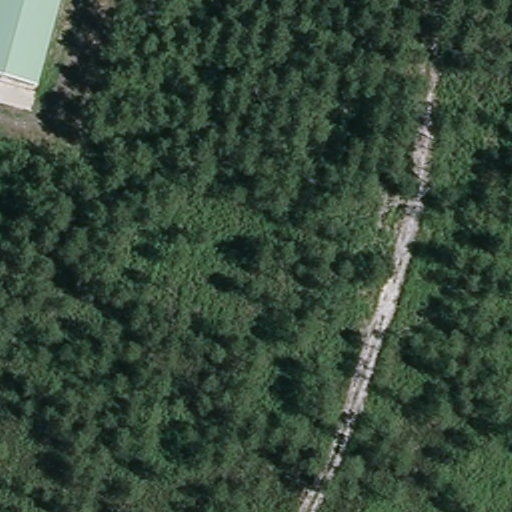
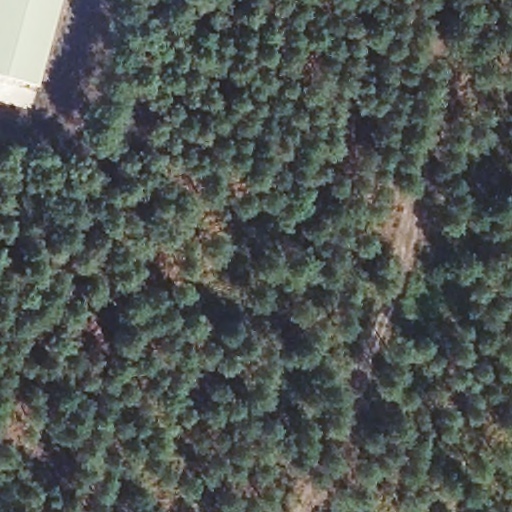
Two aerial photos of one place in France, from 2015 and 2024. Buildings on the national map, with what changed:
unchanged [(0,71),(0,0),(64,0),(41,84),(0,71)]

